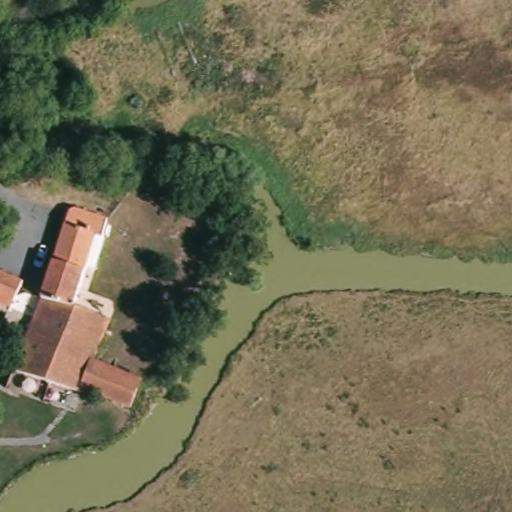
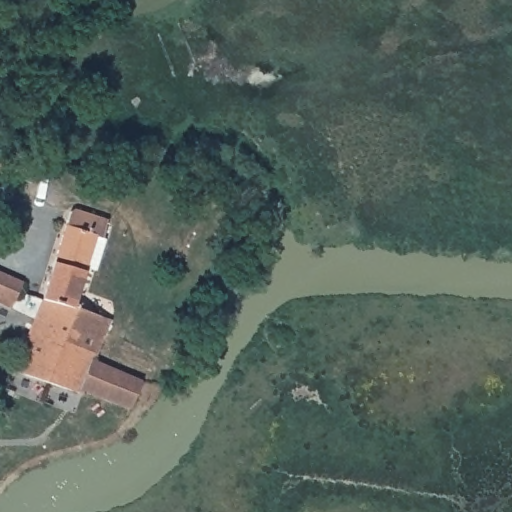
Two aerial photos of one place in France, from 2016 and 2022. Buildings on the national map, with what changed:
unchanged [(111,224),(105,243),(97,241),(73,320),(81,323),(90,302),(113,310),(92,370),(130,383),(118,410),(81,395),(78,403),(15,380),(69,210),(111,224)]
unchanged [(7,310),(0,307),(0,273),(22,285),(7,310)]

